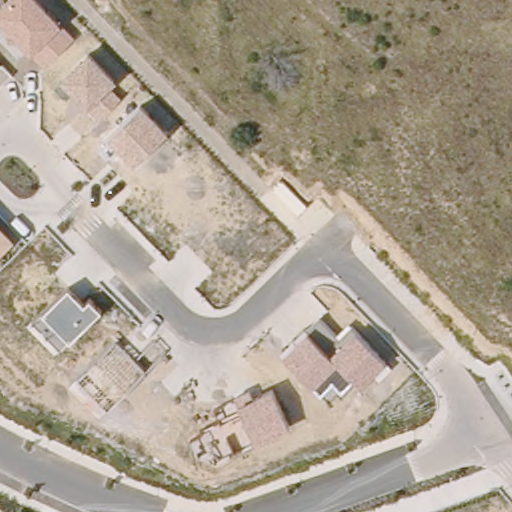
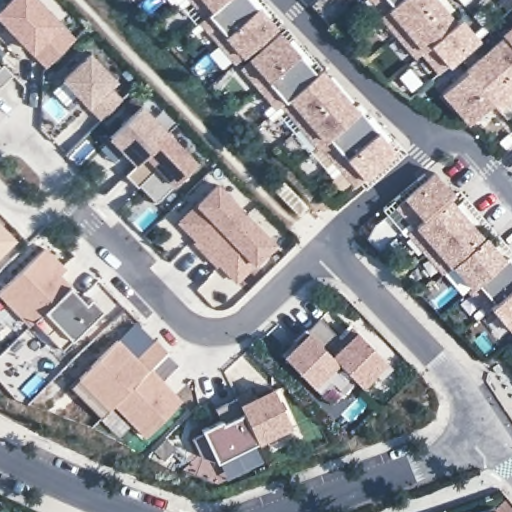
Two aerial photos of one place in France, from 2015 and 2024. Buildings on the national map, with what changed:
unchanged [(61,24),(72,39),(46,67),(31,52),(0,21),(0,4),(5,0),(37,0),(61,24)]
new [(275,28),(235,62),(200,21),(205,16),(191,0),(250,0),(275,28)]
new [(383,12),(373,0),(397,0),(383,12)]
new [(383,12),(397,0),(434,0),(436,2),(397,36),(380,15),(383,12)]
new [(436,2),(453,21),(453,22),(420,51),(421,52),(415,56),(397,36),(436,2)]
new [(453,22),(453,21),(458,16),(477,38),(438,72),(421,52),(420,51),(453,22)]
new [(512,46),(505,37),(502,35),(512,26),(512,46)]
new [(280,33),(315,74),(320,70),(356,113),(358,111),(394,152),(355,186),(320,145),(317,148),(281,106),(277,109),(240,67),(280,33)]
new [(505,37),(512,46),(512,86),(485,54),(504,37),(505,37)]
unchanged [(116,81),(111,86),(120,97),(97,117),(87,107),(60,77),(89,53),(116,81)]
new [(512,86),(512,99),(498,111),(491,103),(492,102),(465,71),(485,54),(512,86)]
new [(465,71),(492,102),(491,103),(468,123),(441,92),(465,71)]
unchanged [(167,133),(133,164),(107,137),(139,105),(167,133)]
new [(167,133),(196,162),(175,184),(156,203),(126,173),(133,164),(143,155),(167,133)]
new [(452,264),(443,273),(425,252),(408,232),(405,236),(400,231),(410,222),(395,206),(435,173),(453,194),(447,199),(461,215),(466,209),(470,213),(473,217),(467,222),(481,239),(452,264)]
new [(216,185),(245,215),(205,254),(193,242),(198,237),(194,232),(191,235),(179,222),(216,185)]
new [(245,215),(273,244),(235,280),(223,268),(225,265),(221,261),(216,266),(205,254),(245,215)]
unchanged [(15,236),(0,251),(0,221),(15,236)]
new [(481,239),(502,260),(503,261),(472,287),(471,286),(452,264),(481,239)]
new [(27,323),(0,297),(0,290),(45,246),(66,267),(57,276),(68,286),(31,318),(27,323)]
new [(472,287),(503,261),(502,260),(506,256),(512,262),(512,287),(489,307),(476,319),(472,313),(481,305),(468,289),(471,286),(472,287)]
unchanged [(68,286),(85,303),(90,297),(101,309),(70,338),(60,349),(31,318),(68,286)]
new [(489,307),(512,287),(512,328),(510,330),(489,307)]
unchanged [(317,317),(336,335),(350,322),(391,365),(378,378),(375,374),(363,386),(351,376),(340,387),(333,379),(320,392),(280,351),(317,317)]
new [(117,338),(136,357),(155,339),(166,351),(112,405),(108,409),(76,380),(117,338)]
new [(166,351),(179,363),(163,380),(182,398),(145,436),(112,405),(166,351)]
unchanged [(250,387),(255,395),(272,388),(289,427),(253,442),(234,396),(250,387)]
unchanged [(234,396),(253,442),(216,461),(196,451),(190,436),(203,430),(200,424),(219,417),(211,403),(233,393),(234,396)]
demolished [(512,512),(490,512),(485,506),(505,491),(512,501),(512,512)]
new [(480,512),(493,508),(497,512),(480,512)]

